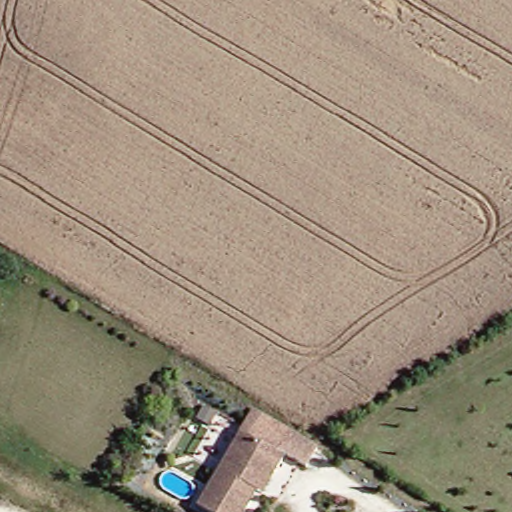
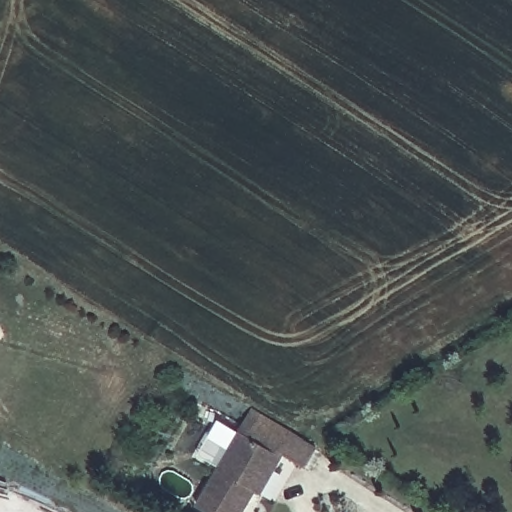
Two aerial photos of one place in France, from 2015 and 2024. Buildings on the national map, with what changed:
unchanged [(263,487),(248,512),(224,512),(205,500),(261,409),(302,435),(280,470),(269,490),(263,487)]

